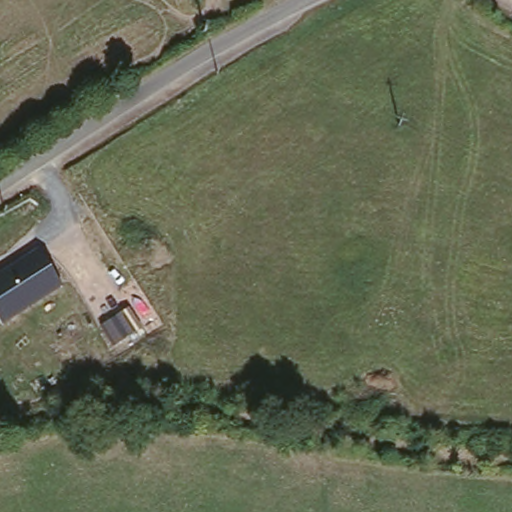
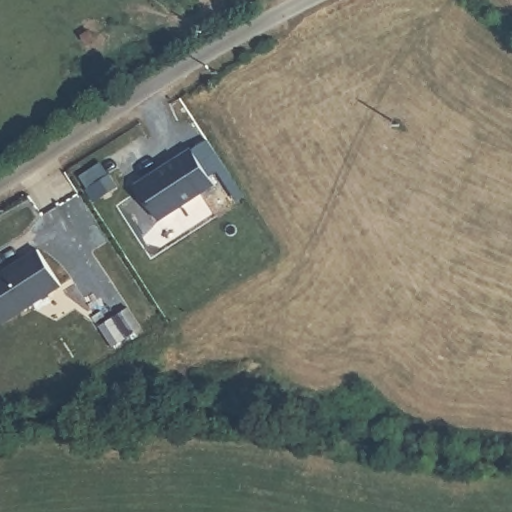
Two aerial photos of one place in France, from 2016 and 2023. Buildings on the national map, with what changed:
new [(193,148),(217,186),(159,222),(136,186),(193,148)]
unchanged [(65,288),(4,328),(0,322),(0,273),(39,248),(65,288)]
new [(127,309),(139,328),(112,346),(99,327),(127,309)]

